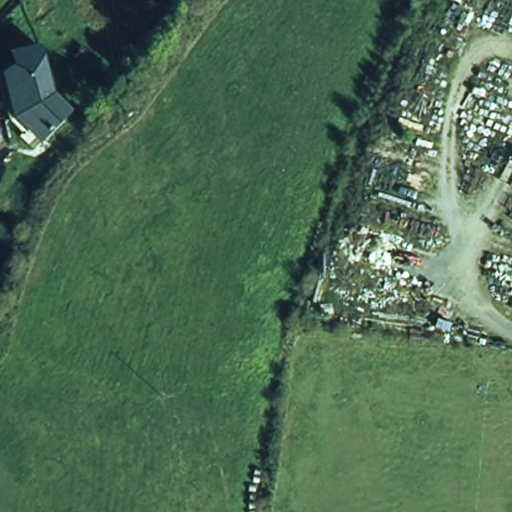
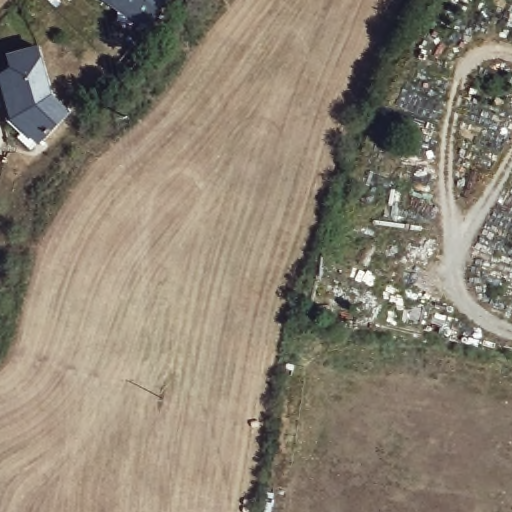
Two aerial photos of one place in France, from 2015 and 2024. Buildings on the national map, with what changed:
new [(128,21),(102,0),(170,0),(146,34),(128,21)]
unchanged [(6,53),(38,45),(51,94),(70,114),(39,148),(11,121),(0,80),(0,73),(10,69),(6,53)]

